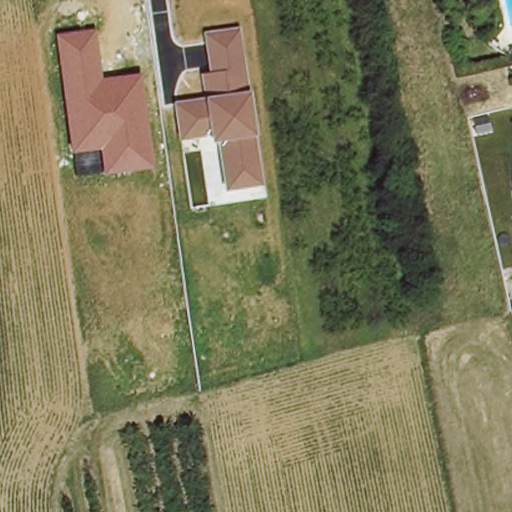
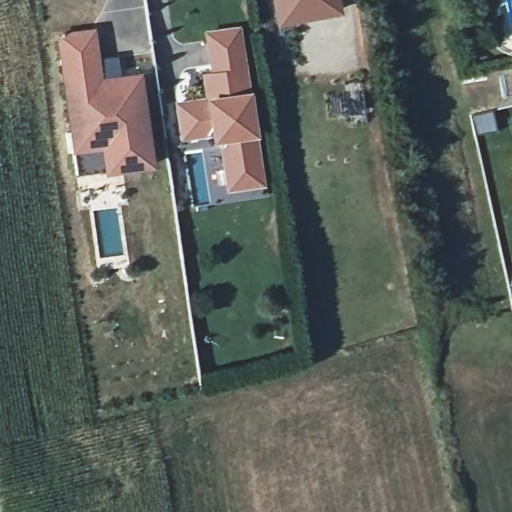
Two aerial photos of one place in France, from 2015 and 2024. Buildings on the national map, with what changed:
new [(343,13),(276,25),(271,0),(340,0),(343,13)]
unchanged [(95,27),(103,79),(142,72),(155,168),(104,176),(101,148),(72,152),(56,33),(95,27)]
unchanged [(226,190),(218,143),(210,144),(209,137),(180,139),(174,102),(204,98),(201,74),(210,73),(203,33),(240,28),(250,97),(255,135),(264,185),(226,190)]

